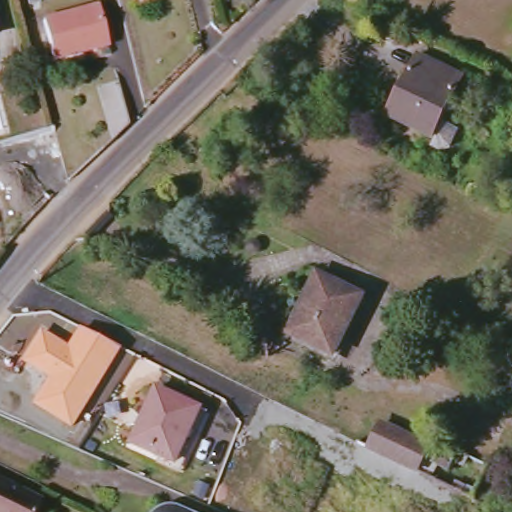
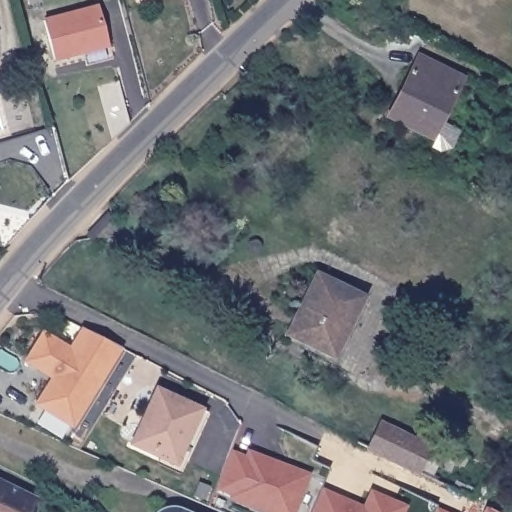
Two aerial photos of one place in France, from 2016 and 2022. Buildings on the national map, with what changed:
unchanged [(101,9),(111,49),(86,56),(85,53),(58,61),(48,23),(101,9)]
unchanged [(419,57),(467,81),(436,137),(396,119),(405,100),(399,96),(419,57)]
unchanged [(97,90),(120,84),(129,121),(108,140),(97,90)]
unchanged [(320,275),(366,298),(337,356),(295,336),(315,296),(310,295),(320,275)]
unchanged [(70,347),(82,328),(122,351),(73,428),(35,406),(51,381),(24,363),(43,332),(70,347)]
unchanged [(158,390),(203,411),(177,463),(134,445),(158,390)]
unchanged [(386,424),(435,448),(422,472),(373,447),(386,424)]
new [(295,512),(262,512),(229,498),(231,495),(217,489),(232,451),(245,455),(248,449),(310,475),(295,512)]
unchanged [(40,500),(33,512),(0,512),(0,479),(40,500)]
demolished [(264,495),(256,511),(239,505),(247,486),(264,495)]
new [(322,487),(364,505),(370,490),(409,507),(406,512),(311,512),(322,487)]
new [(436,507),(446,512),(433,512),(436,507)]
new [(488,507),(497,512),(485,512),(488,507)]

